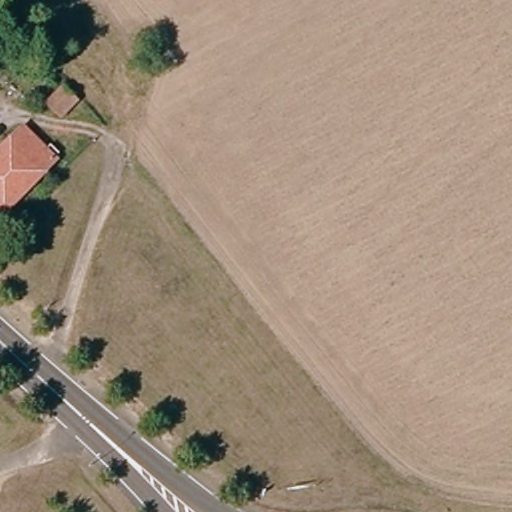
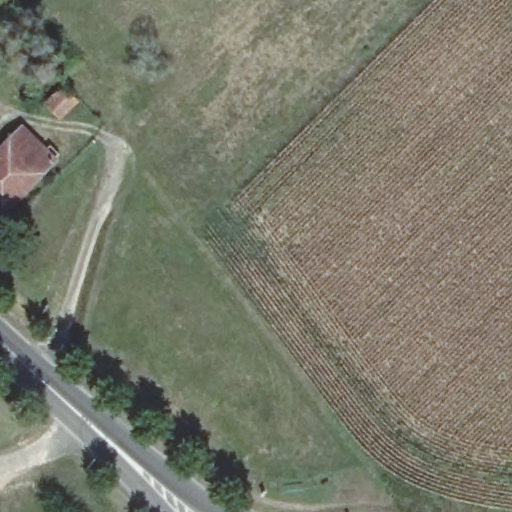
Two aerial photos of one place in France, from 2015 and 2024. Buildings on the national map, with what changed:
unchanged [(45,164),(0,208),(0,142),(12,130),(45,164)]

